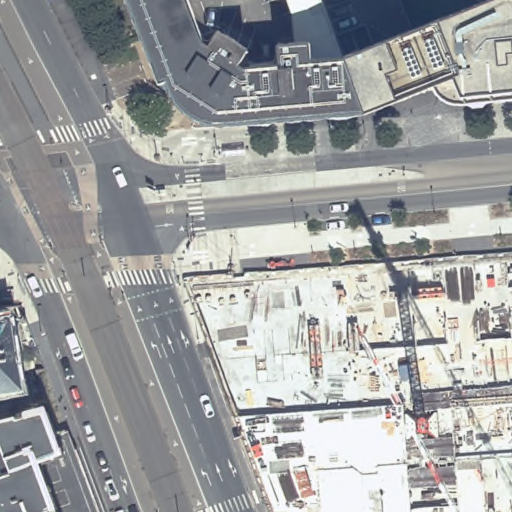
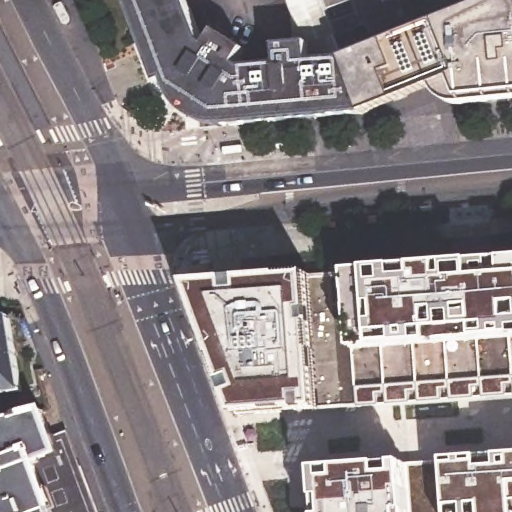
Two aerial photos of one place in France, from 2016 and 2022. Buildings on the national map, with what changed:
unchanged [(229,117),(222,116),(181,91),(177,90),(168,92),(162,77),(157,78),(127,0),(185,0),(189,9),(206,50),(215,32),(245,50),(237,67),(251,65),(278,63),(276,44),(296,41),(307,42),(312,59),(344,58),(365,112),(232,124),(229,117)]
unchanged [(322,0),(342,54),(344,58),(312,59),(307,42),(296,41),(291,10),(287,0),(322,0)]
unchanged [(460,102),(456,99),(454,98),(453,97),(451,96),(450,95),(449,94),(448,94),(445,91),(442,89),(441,87),(438,84),(437,83),(365,112),(344,58),(342,54),(413,28),(402,0),(512,0),(512,99),(463,103),(460,102)]
new [(237,416),(188,284),(310,274),(347,271),(369,269),(512,259),(512,396),(320,410),(237,416)]
unchanged [(15,320),(27,396),(0,400),(0,322),(15,320)]
unchanged [(32,376),(44,374),(49,394),(36,396),(32,376)]
unchanged [(51,401),(54,416),(49,417),(0,429),(0,413),(51,401)]
unchanged [(49,417),(57,440),(74,434),(102,512),(2,512),(0,506),(0,468),(9,464),(0,442),(0,429),(49,417)]
new [(316,469),(406,461),(447,460),(512,455),(512,512),(318,512),(316,469)]

